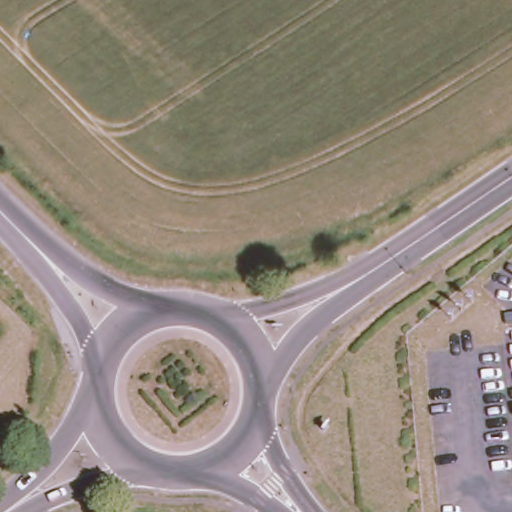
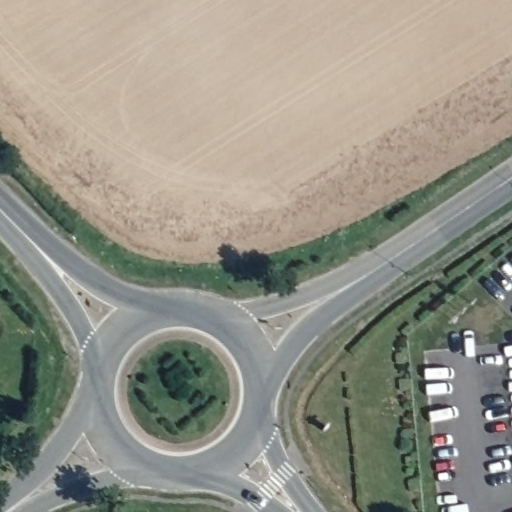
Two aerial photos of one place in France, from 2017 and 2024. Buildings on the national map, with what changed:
[]

